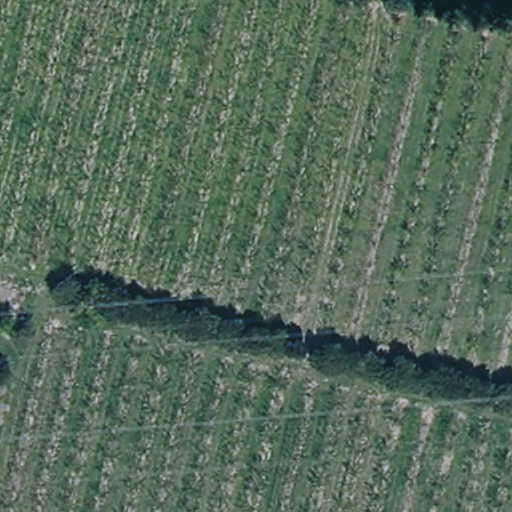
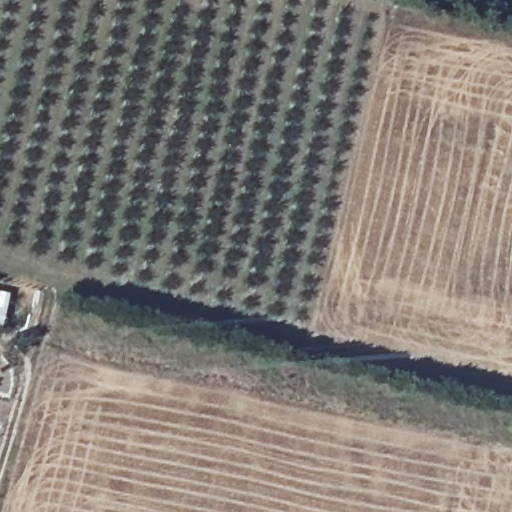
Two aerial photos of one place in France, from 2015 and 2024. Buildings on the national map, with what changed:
new [(2,322),(0,322),(0,289),(9,291),(2,322)]

